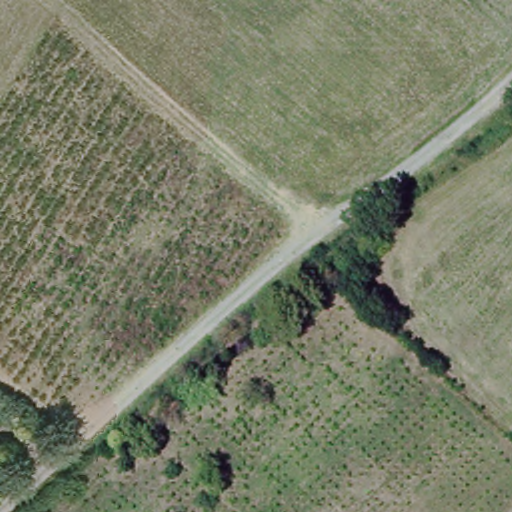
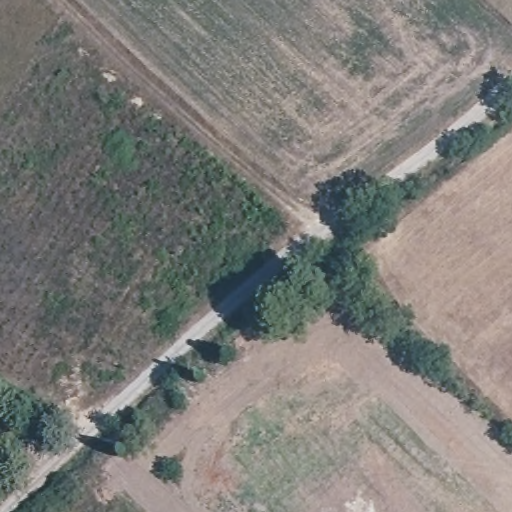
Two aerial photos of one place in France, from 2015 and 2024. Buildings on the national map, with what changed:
unchanged [(0,472),(0,459),(8,465),(0,472)]

